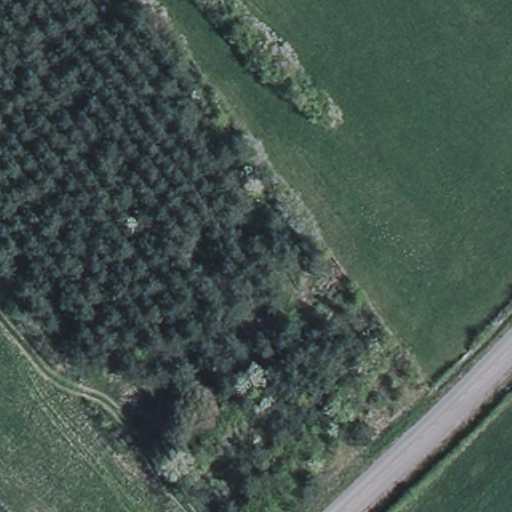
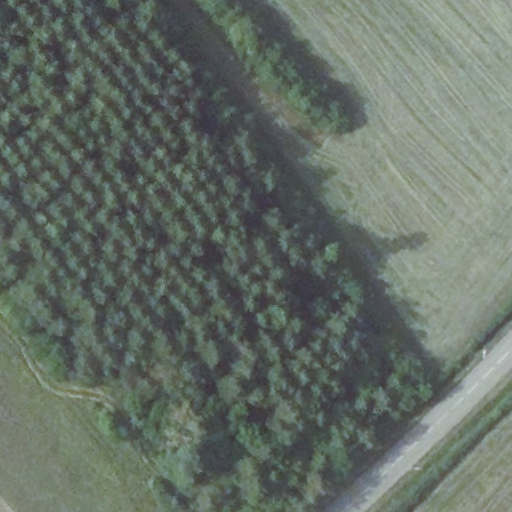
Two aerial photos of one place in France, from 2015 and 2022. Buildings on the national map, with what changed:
[]

